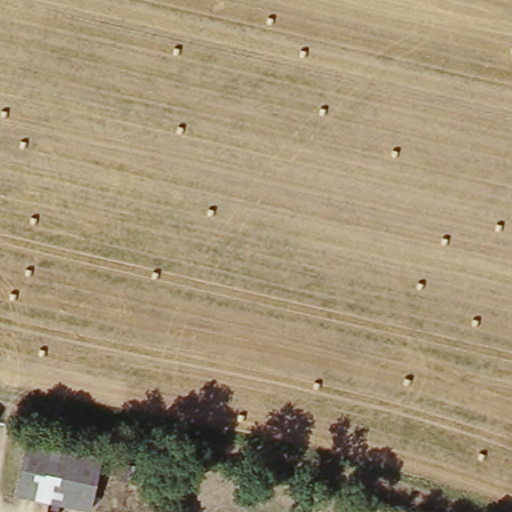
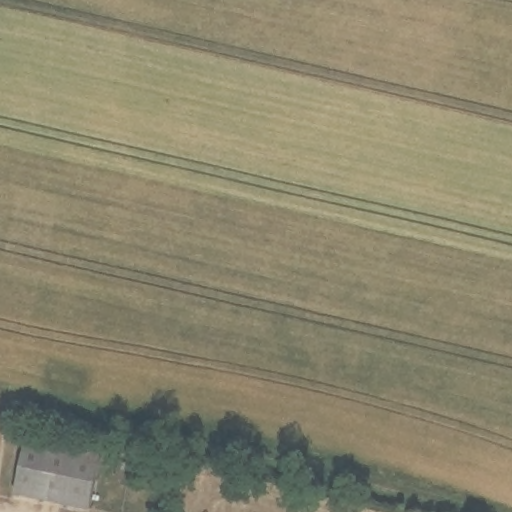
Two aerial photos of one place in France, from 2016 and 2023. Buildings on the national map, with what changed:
unchanged [(102,455),(94,507),(21,494),(30,442),(102,455)]
unchanged [(147,457),(145,475),(120,471),(123,453),(147,457)]

